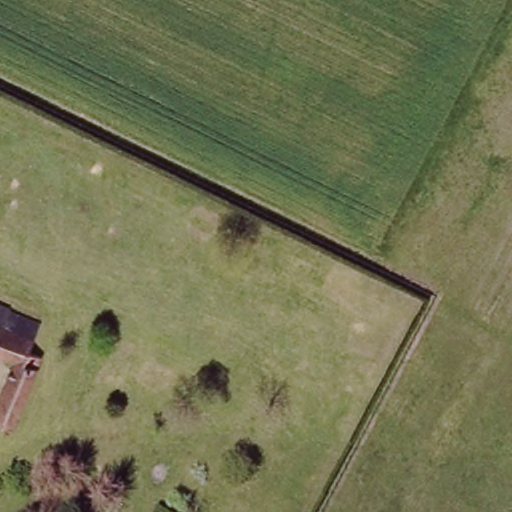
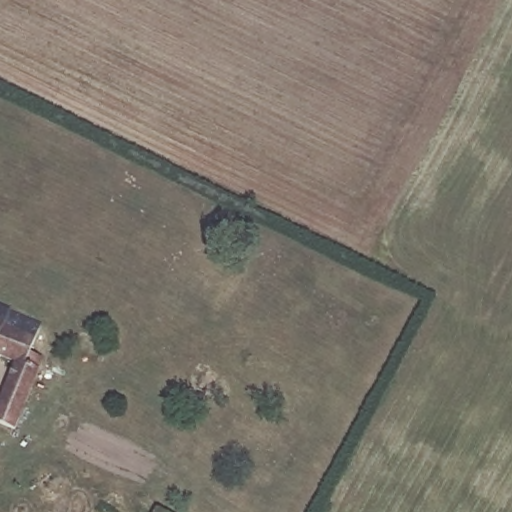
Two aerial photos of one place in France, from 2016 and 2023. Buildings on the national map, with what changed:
unchanged [(0,403),(17,363),(0,356),(0,306),(46,327),(34,353),(45,358),(15,428),(0,421),(0,403)]

